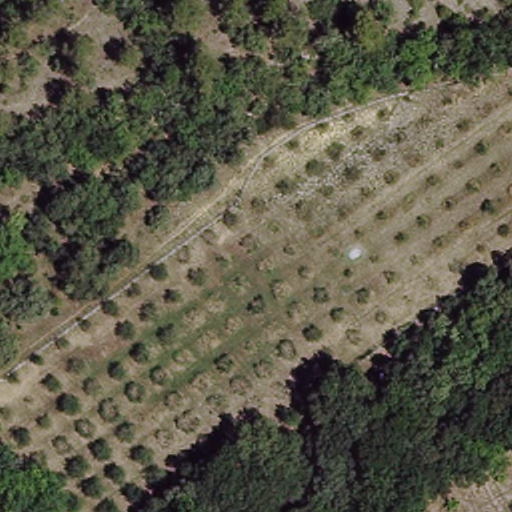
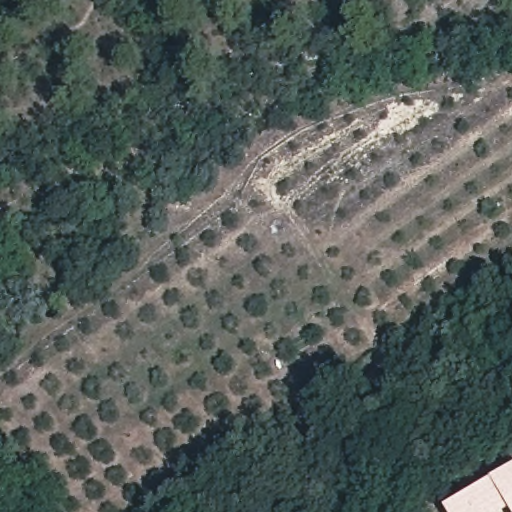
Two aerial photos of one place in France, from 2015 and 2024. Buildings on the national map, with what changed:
new [(502,512),(454,512),(451,507),(512,471),(512,506),(502,512)]

